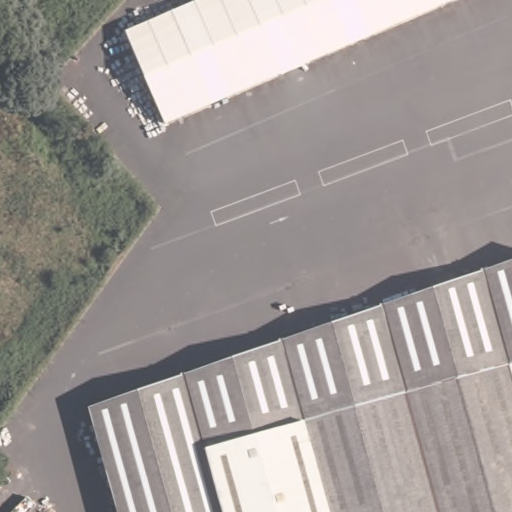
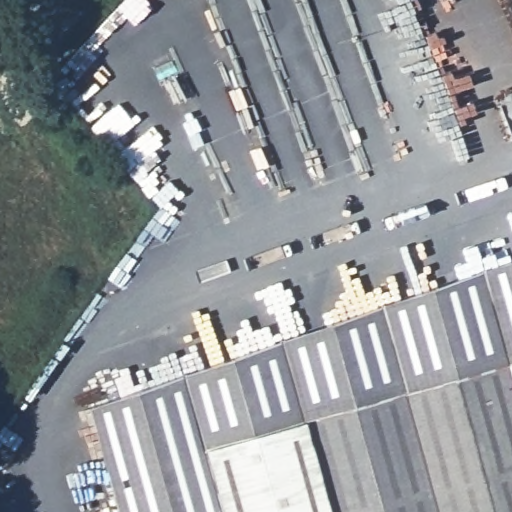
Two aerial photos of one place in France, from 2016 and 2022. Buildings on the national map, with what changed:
demolished [(126,29),(196,0),(457,0),(165,125),(126,29)]
unchanged [(512,259),(512,512),(121,512),(94,403),(512,259)]

